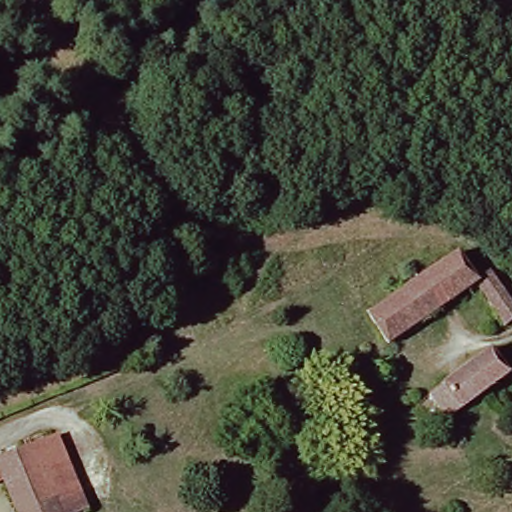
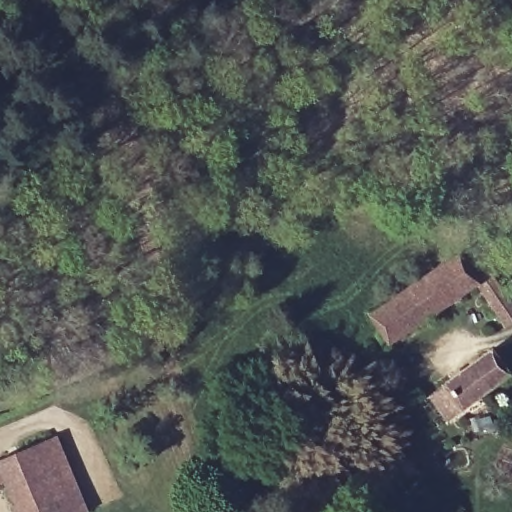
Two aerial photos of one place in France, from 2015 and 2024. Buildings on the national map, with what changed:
unchanged [(384,352),(365,321),(456,260),(475,290),(384,352)]
unchanged [(475,290),(492,280),(512,311),(512,329),(505,334),(475,290)]
unchanged [(512,379),(512,380),(487,396),(444,425),(429,401),(497,357),(512,379)]
unchanged [(81,512),(11,512),(0,486),(0,456),(49,436),(81,512)]

